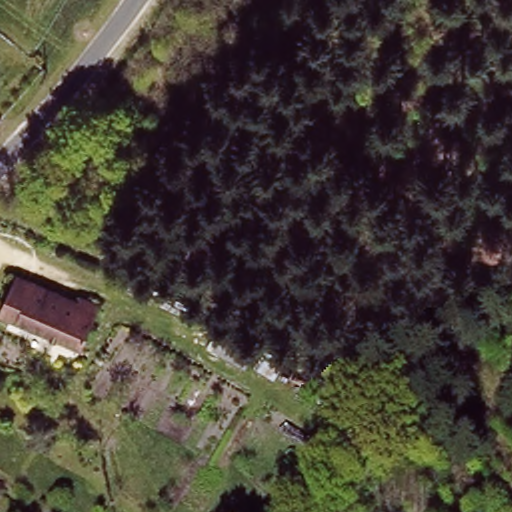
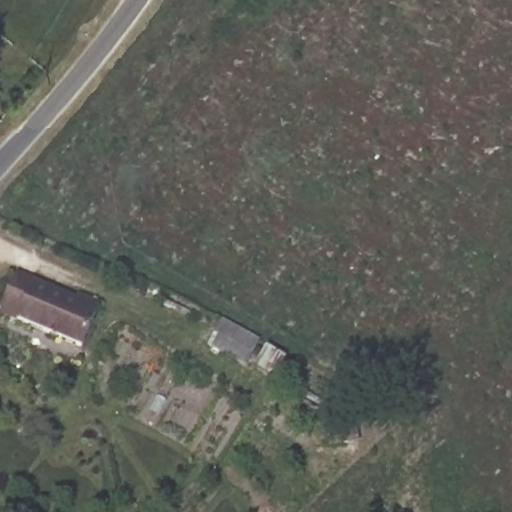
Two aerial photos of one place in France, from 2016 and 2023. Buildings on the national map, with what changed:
unchanged [(19,271),(76,296),(78,291),(102,302),(84,344),(2,310),(19,271)]
unchanged [(208,350),(221,324),(260,344),(248,368),(208,350)]
unchanged [(329,413),(356,410),(361,446),(334,450),(329,413)]

